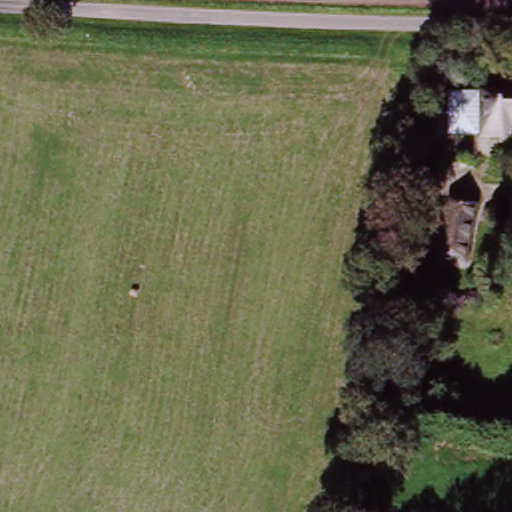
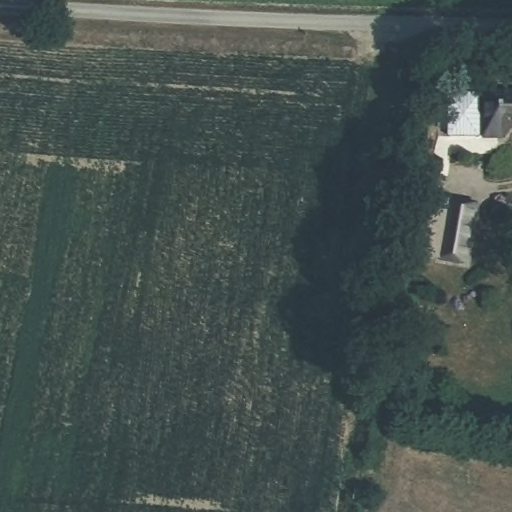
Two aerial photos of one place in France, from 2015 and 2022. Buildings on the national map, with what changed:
unchanged [(446,136),(447,95),(481,96),(481,137),(446,136)]
unchanged [(512,96),(512,126),(503,126),(502,138),(481,137),(481,96),(512,96)]
unchanged [(479,214),(468,274),(442,269),(454,209),(479,214)]

